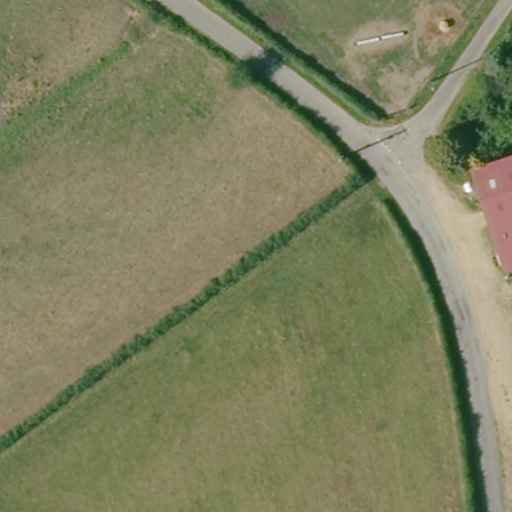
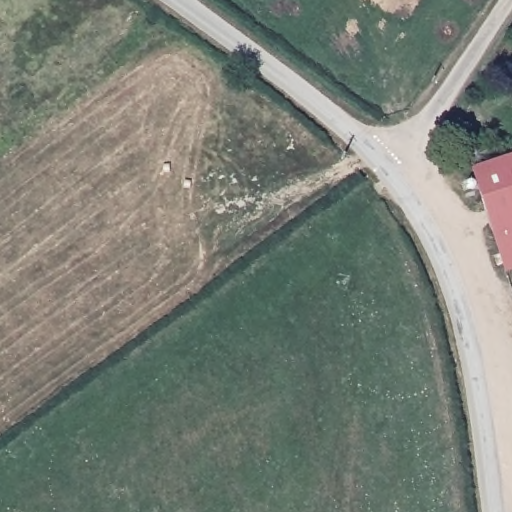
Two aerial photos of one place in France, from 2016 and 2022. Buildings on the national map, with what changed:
unchanged [(477,165),(512,156),(512,265),(507,266),(477,165)]

